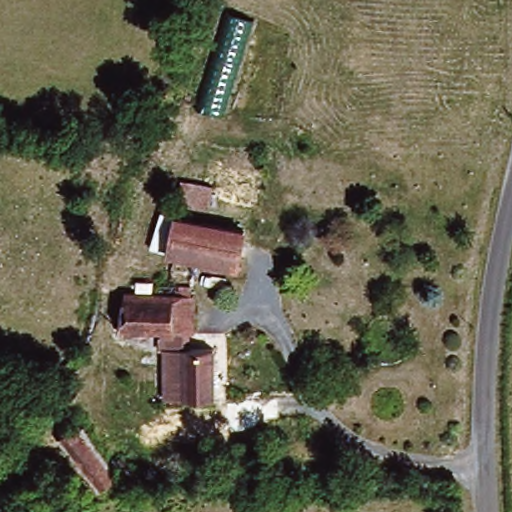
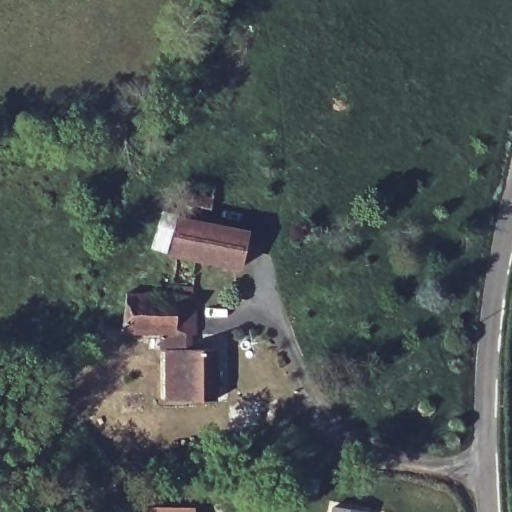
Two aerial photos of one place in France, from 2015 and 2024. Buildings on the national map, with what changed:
unchanged [(216,189),(208,208),(179,198),(186,180),(216,189)]
unchanged [(224,273),(160,253),(172,219),(236,238),(224,273)]
unchanged [(114,325),(125,293),(196,303),(191,336),(186,335),(161,331),(114,325)]
unchanged [(170,403),(148,399),(151,385),(161,331),(186,335),(182,355),(191,356),(194,344),(216,348),(211,394),(208,407),(170,403)]
unchanged [(113,477),(88,496),(53,441),(77,425),(113,477)]
new [(329,505),(368,511),(368,512),(328,512),(329,505)]
new [(148,506),(194,507),(194,512),(147,512),(148,506)]

